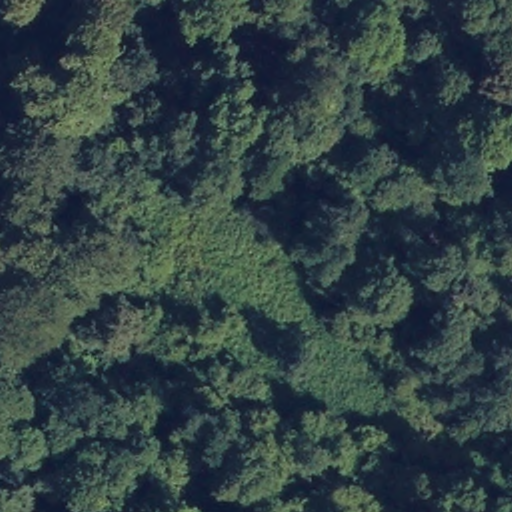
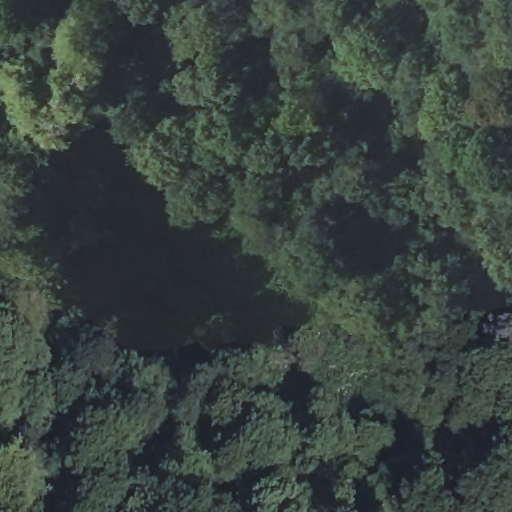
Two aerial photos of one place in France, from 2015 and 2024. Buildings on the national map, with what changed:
[]

